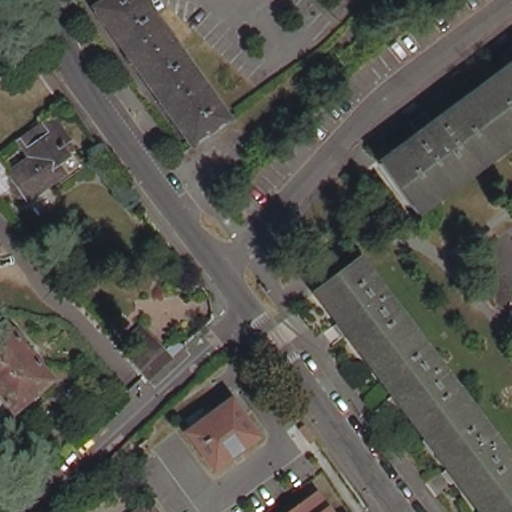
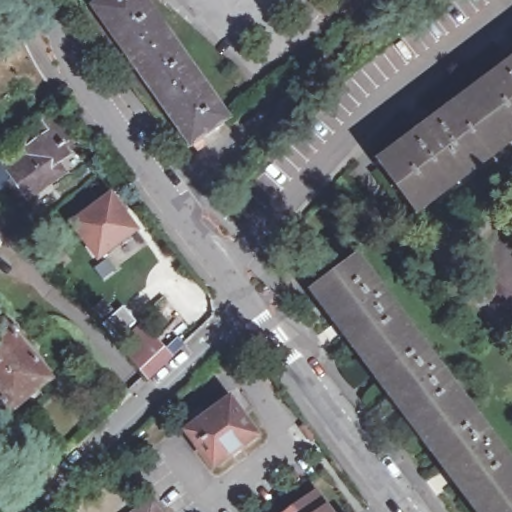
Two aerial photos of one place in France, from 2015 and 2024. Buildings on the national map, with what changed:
unchanged [(150,0),(235,120),(199,146),(99,6),(108,0),(150,0)]
unchanged [(382,162),(512,65),(512,141),(419,211),(382,162)]
unchanged [(9,186),(0,193),(0,162),(11,174),(26,162),(32,158),(19,141),(53,116),(72,141),(69,143),(74,150),(69,154),(57,162),(66,174),(50,185),(30,199),(29,196),(25,197),(17,197),(9,186)]
new [(70,221),(112,190),(142,233),(99,264),(70,221)]
unchanged [(360,257),(512,460),(512,512),(482,512),(315,290),(360,257)]
new [(102,325),(123,307),(137,322),(115,341),(102,325)]
unchanged [(43,391),(18,413),(0,392),(0,331),(10,323),(15,330),(32,351),(57,379),(43,391)]
unchanged [(148,379),(133,362),(125,351),(133,344),(132,342),(137,337),(139,339),(145,333),(156,342),(164,350),(175,339),(184,346),(148,379)]
unchanged [(202,405),(210,415),(234,398),(260,435),(215,467),(189,431),(194,427),(187,416),(202,405)]
unchanged [(125,462),(112,471),(103,461),(115,450),(125,462)]
unchanged [(319,489),(336,512),(289,512),(319,489)]
unchanged [(154,500),(164,512),(138,512),(154,500)]

